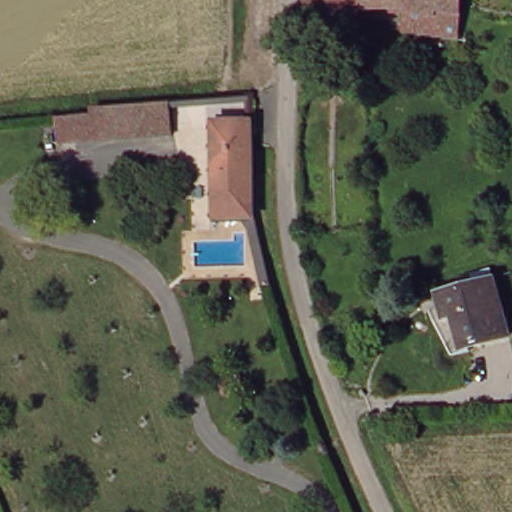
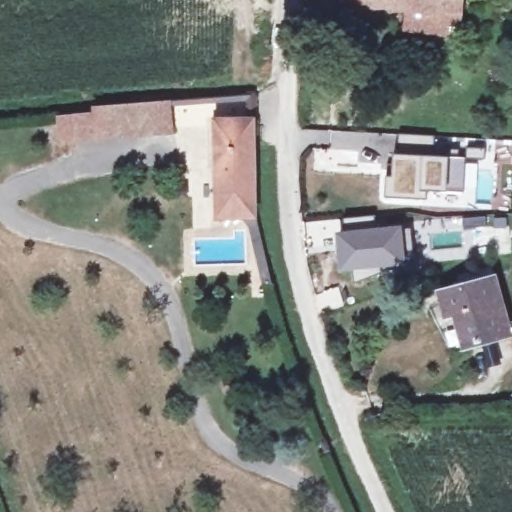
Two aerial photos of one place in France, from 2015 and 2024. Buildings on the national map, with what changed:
unchanged [(315,0),(466,0),(464,17),(459,16),(456,41),(414,39),(416,13),(371,15),(371,22),(314,21),(315,0)]
unchanged [(336,56),(336,74),(309,74),(311,56),(336,56)]
unchanged [(94,112),(169,104),(171,132),(130,136),(96,140),(94,112)]
unchanged [(57,144),(54,116),(94,112),(96,140),(57,144)]
unchanged [(234,222),(213,223),(211,125),(246,124),(248,222),(234,222)]
new [(388,177),(394,177),(394,154),(398,154),(399,135),(434,137),(433,157),(444,157),(444,150),(458,151),(458,158),(464,159),(464,192),(447,190),(426,190),(426,199),(387,197),(388,177)]
new [(336,232),(344,232),(344,219),(374,216),(375,227),(402,225),(402,227),(411,227),(415,260),(406,263),(381,273),(354,282),(356,268),(341,272),(336,232)]
unchanged [(459,316),(449,318),(444,297),(491,284),(506,340),(468,350),(459,316)]

